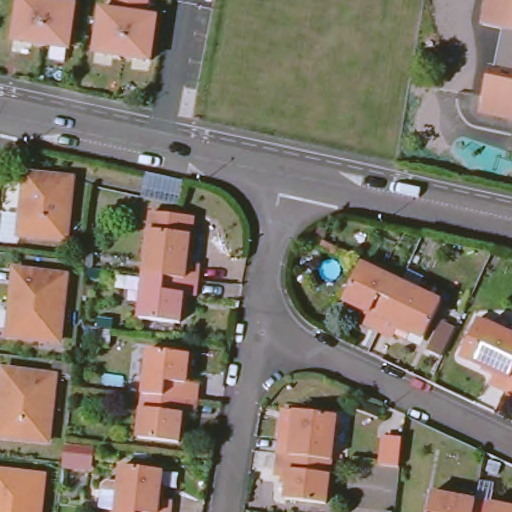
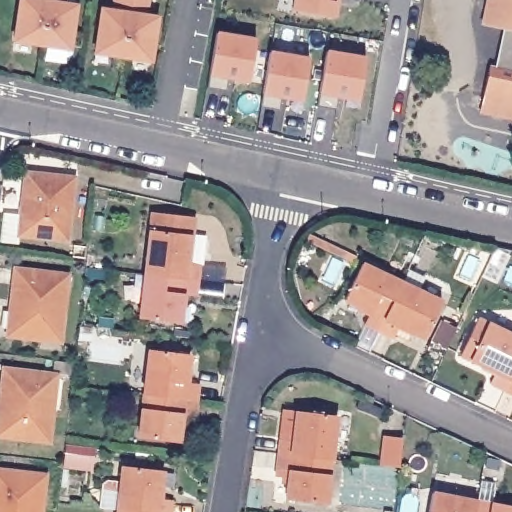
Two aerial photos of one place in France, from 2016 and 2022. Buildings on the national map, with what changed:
unchanged [(75,5),(69,49),(13,41),(19,0),(64,0),(64,4),(75,5)]
unchanged [(157,17),(150,61),(122,57),(94,53),(101,9),(112,11),(114,0),(147,0),(145,15),(157,17)]
new [(292,9),(293,0),(339,0),(335,16),(292,9)]
unchanged [(492,68),(500,30),(479,24),(484,0),(512,0),(512,118),(475,110),(485,67),(492,68)]
new [(248,82),(227,79),(225,91),(207,88),(209,75),(217,31),(255,38),(248,82)]
new [(302,101),(280,97),(279,109),(260,106),(262,94),(270,49),(308,57),(302,101)]
new [(359,100),(338,98),(335,108),(318,106),(320,93),(327,49),(365,55),(359,100)]
unchanged [(19,234),(27,172),(74,177),(67,239),(19,234)]
unchanged [(139,274),(145,229),(186,233),(182,262),(195,263),(193,280),(139,274)]
unchanged [(379,324),(365,317),(370,307),(344,295),(362,258),(400,277),(379,324)]
unchanged [(9,335),(16,269),(67,275),(59,340),(9,335)]
unchanged [(193,280),(192,295),(179,294),(175,322),(135,317),(139,274),(193,280)]
unchanged [(400,277),(441,296),(424,332),(399,321),(394,331),(379,324),(400,277)]
unchanged [(456,324),(443,351),(428,344),(441,317),(456,324)]
unchanged [(505,389),(491,383),(496,372),(460,355),(477,318),(512,335),(512,374),(505,389)]
unchanged [(139,393),(144,350),(185,355),(182,382),(193,384),(192,399),(139,393)]
unchanged [(0,411),(5,370),(55,376),(47,441),(0,436),(0,411)]
unchanged [(505,389),(512,374),(512,393),(505,389)]
unchanged [(192,399),(190,415),(178,414),(175,442),(134,437),(139,393),(192,399)]
unchanged [(286,437),(290,409),(302,410),(341,415),(336,460),(284,454),(286,437)]
unchanged [(402,436),(400,462),(380,460),(382,434),(402,436)]
unchanged [(336,460),(332,504),(292,499),(295,472),(282,470),(284,454),(336,460)]
unchanged [(112,510),(117,466),(159,470),(155,499),(167,500),(165,512),(124,512),(112,510)]
unchanged [(0,471),(44,476),(40,512),(0,512),(0,471)]
unchanged [(468,512),(423,512),(427,487),(471,496),(468,512)]
unchanged [(471,496),(512,505),(512,512),(468,512),(471,496)]
unchanged [(124,512),(112,512),(112,510),(124,512)]

